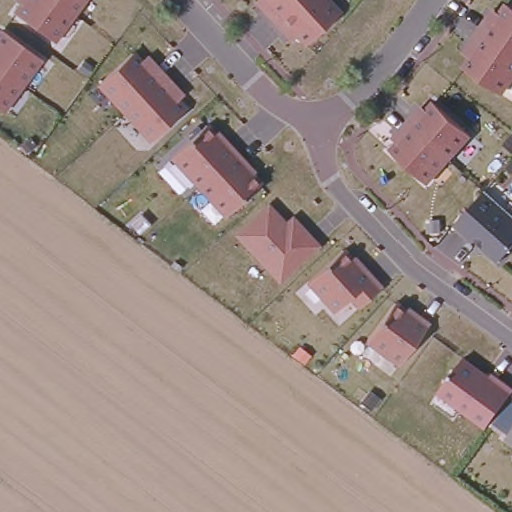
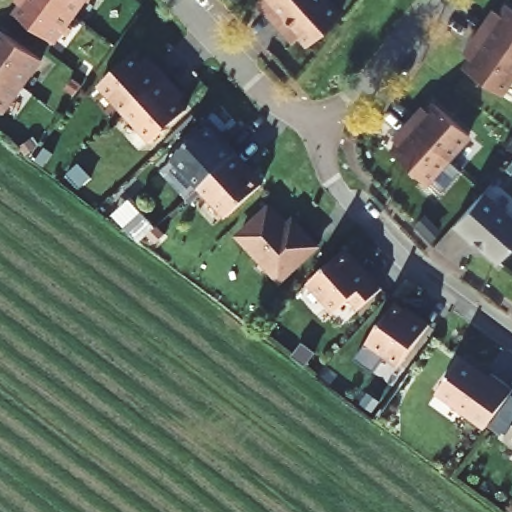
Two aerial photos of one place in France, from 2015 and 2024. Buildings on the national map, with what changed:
unchanged [(53,43),(15,14),(26,0),(52,0),(73,16),(53,43)]
unchanged [(52,0),(85,0),(73,16),(52,0)]
unchanged [(259,3),(263,0),(288,0),(269,16),(259,3)]
unchanged [(269,16),(288,0),(326,0),(336,11),(301,40),(286,22),(279,28),(269,16)]
unchanged [(489,26),(502,8),(512,14),(512,62),(473,34),(482,21),(489,26)]
unchanged [(3,31),(41,59),(21,86),(0,70),(0,34),(3,31)]
unchanged [(512,62),(512,71),(494,96),(458,71),(471,52),(464,47),(473,34),(512,62)]
unchanged [(148,71),(155,65),(166,76),(126,113),(99,85),(133,55),(148,71)]
unchanged [(2,112),(0,111),(0,70),(21,86),(2,112)]
unchanged [(176,88),(169,95),(185,111),(152,141),(126,113),(166,76),(176,88)]
unchanged [(419,116),(431,102),(467,134),(444,159),(404,121),(414,111),(419,116)]
unchanged [(404,121),(444,159),(423,183),(387,151),(399,138),(394,133),(404,121)]
unchanged [(223,145),(226,142),(236,154),(222,166),(199,188),(173,158),(206,126),(223,145)]
unchanged [(247,165),(244,168),(261,186),(227,218),(199,188),(222,166),(236,154),(247,165)]
unchanged [(483,192),(512,220),(512,244),(495,263),(479,248),(481,246),(474,239),(471,242),(452,224),(482,193),(483,192)]
unchanged [(290,231),(296,225),(317,248),(280,282),(238,237),(269,209),(290,231)]
unchanged [(343,252),(359,270),(362,268),(381,290),(359,310),(351,300),(336,313),(309,284),(343,252)]
unchanged [(394,305),(414,320),(417,317),(429,326),(400,367),(367,343),(394,305)]
unchanged [(461,355),(509,389),(481,428),(433,395),(461,355)]
unchanged [(512,430),(512,445),(504,440),(512,430)]

